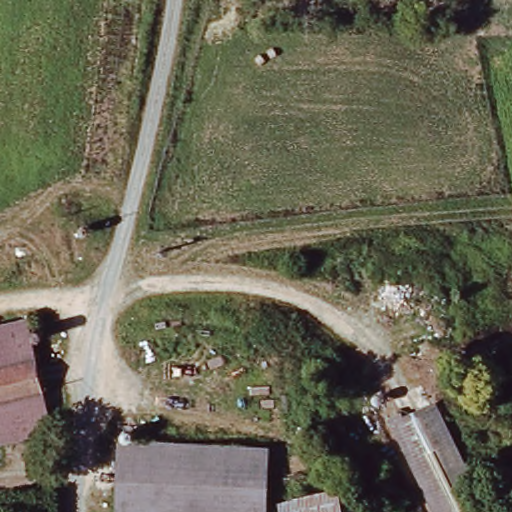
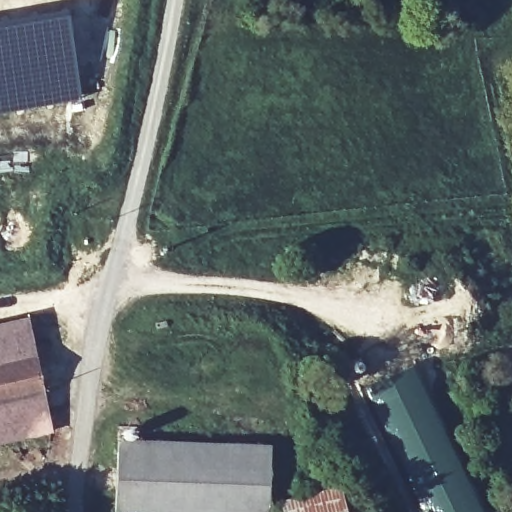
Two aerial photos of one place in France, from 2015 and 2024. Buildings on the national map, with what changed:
new [(83,100),(0,114),(0,25),(68,12),(83,100)]
demolished [(73,261),(0,277),(0,235),(65,221),(73,261)]
unchanged [(44,425),(0,437),(0,328),(20,322),(44,425)]
unchanged [(440,405),(490,512),(438,512),(394,416),(404,410),(409,420),(440,405)]
unchanged [(272,450),(269,512),(115,512),(119,441),(272,450)]
unchanged [(342,512),(291,512),(291,509),(289,497),(339,491),(342,512)]

